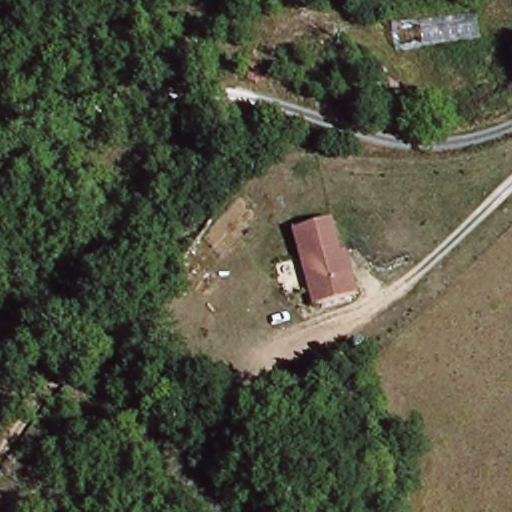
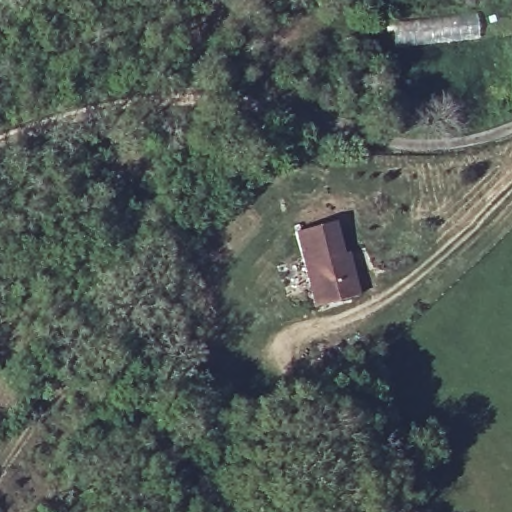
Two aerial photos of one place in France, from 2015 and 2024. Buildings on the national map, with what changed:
unchanged [(349,272),(353,288),(310,299),(290,225),(328,216),(337,247),(342,246),(349,272)]

